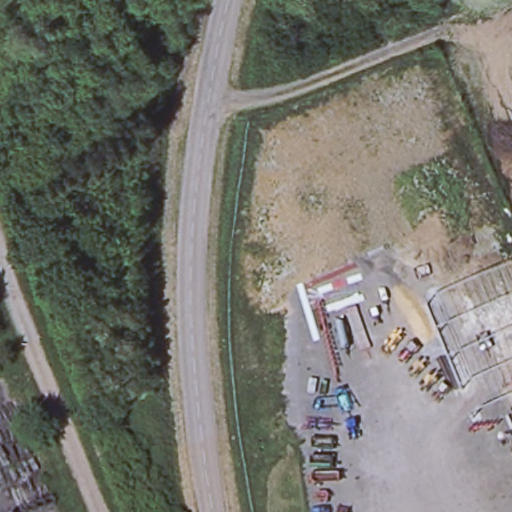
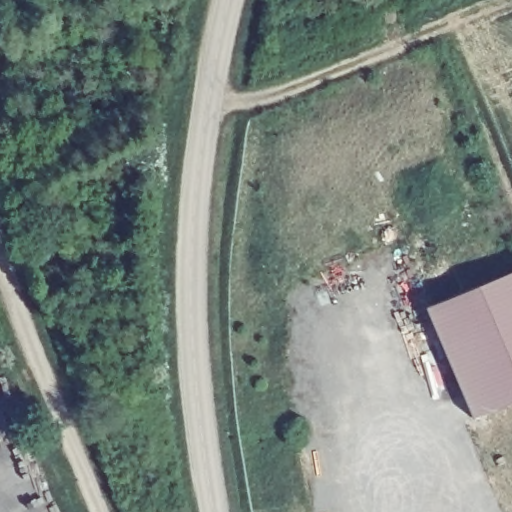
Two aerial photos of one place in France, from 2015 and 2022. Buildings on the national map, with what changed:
new [(473,418),(427,307),(512,273),(512,402),(473,418)]

